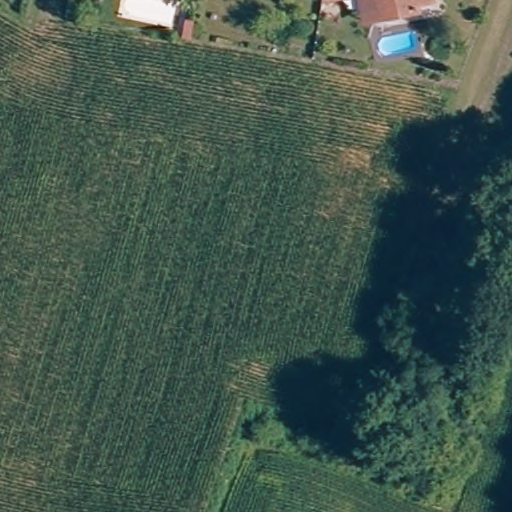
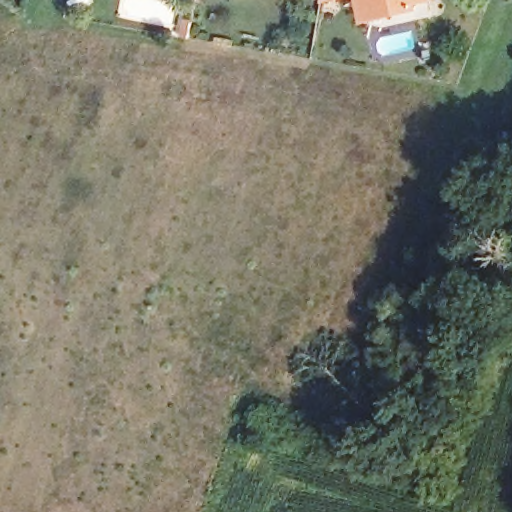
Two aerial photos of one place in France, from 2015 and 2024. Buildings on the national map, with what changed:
unchanged [(321,2),(322,0),(332,0),(321,2)]
unchanged [(358,0),(431,0),(431,2),(414,5),(415,11),(395,15),(362,22),(358,0)]

